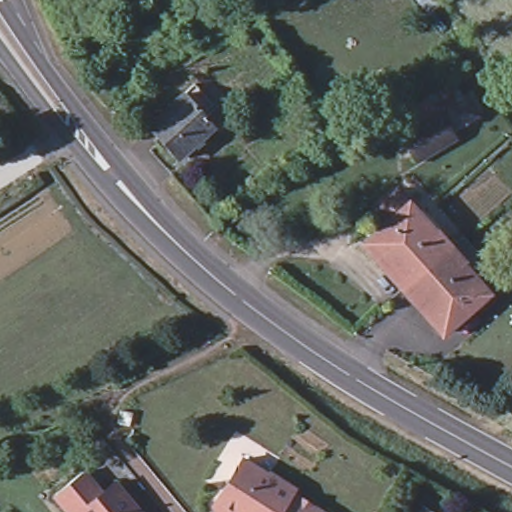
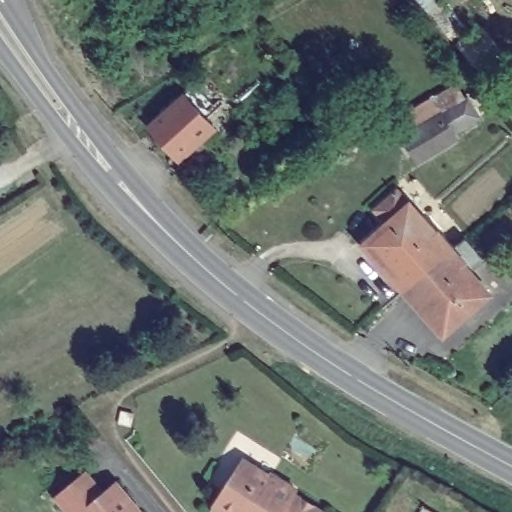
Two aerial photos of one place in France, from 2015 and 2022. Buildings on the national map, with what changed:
unchanged [(418,161),(403,137),(395,121),(431,100),(456,84),(465,100),(467,98),(478,117),(451,133),(455,139),(418,161)]
unchanged [(148,136),(185,104),(195,94),(217,119),(206,129),(215,138),(180,170),(148,136)]
unchanged [(369,265),(392,244),(380,230),(402,210),(420,195),(471,254),(468,257),(489,280),(475,292),(494,314),(448,355),(408,310),(369,265)]
unchanged [(135,412),(131,428),(120,426),(122,410),(135,412)]
unchanged [(251,469),(279,485),(280,483),(305,498),(302,503),(317,512),(225,512),(251,469)]
unchanged [(66,500),(81,487),(99,509),(113,498),(124,512),(76,512),(66,500)]

